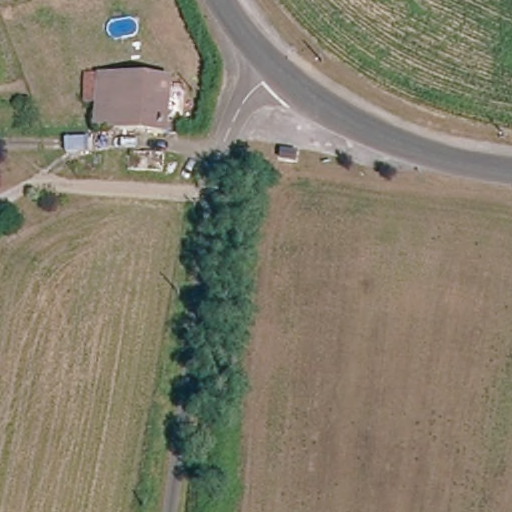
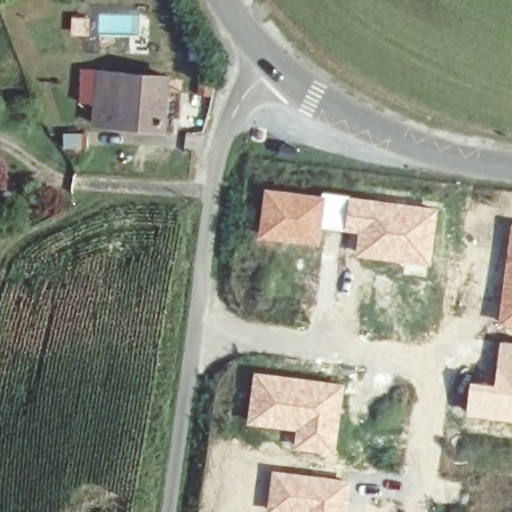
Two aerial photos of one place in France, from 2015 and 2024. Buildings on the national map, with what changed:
unchanged [(170,126),(92,122),(97,98),(79,94),(83,70),(102,74),(175,81),(170,126)]
unchanged [(161,166),(122,166),(123,157),(125,143),(163,142),(162,156),(161,166)]
new [(265,188),(322,195),(322,193),(437,208),(430,268),(354,257),(357,234),(322,230),(320,247),(258,238),(265,188)]
new [(512,224),(512,327),(497,325),(511,224),(512,224)]
new [(493,385),(500,341),(512,342),(512,422),(465,416),(470,381),(493,385)]
new [(254,371),(345,383),(335,456),(293,449),(295,432),(246,425),(254,371)]
new [(351,479),(348,512),(266,512),(272,469),(351,479)]

